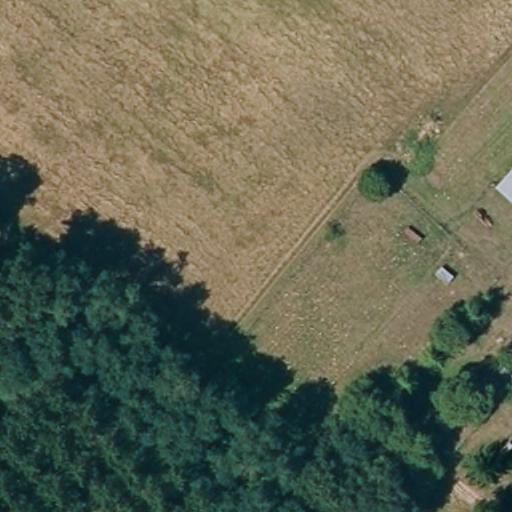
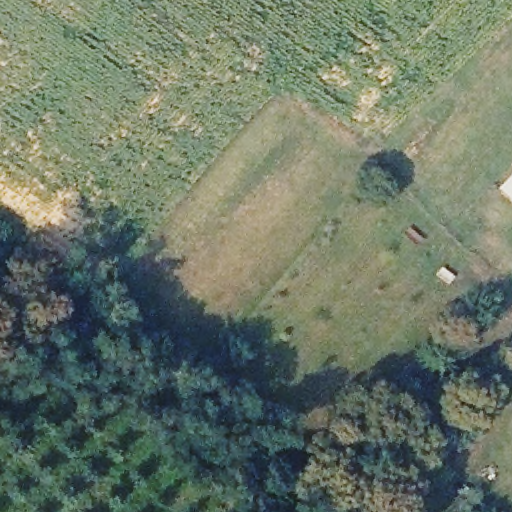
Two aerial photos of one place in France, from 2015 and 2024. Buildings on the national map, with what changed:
unchanged [(512,173),(512,196),(501,186),(512,173)]

